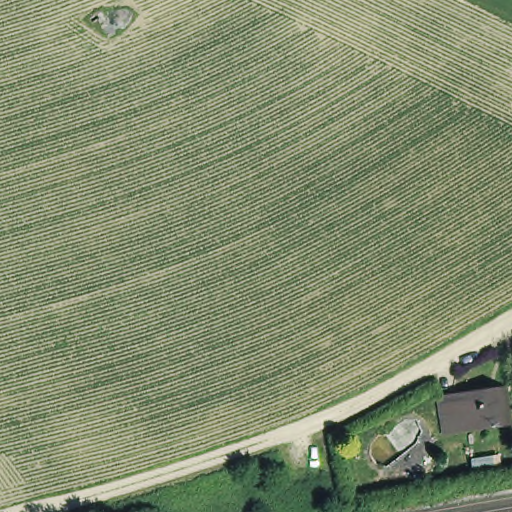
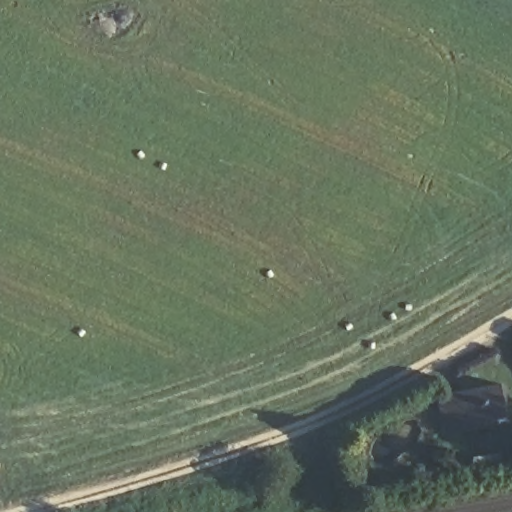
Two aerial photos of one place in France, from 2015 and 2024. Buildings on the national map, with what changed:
unchanged [(502,390),(505,425),(439,431),(436,397),(502,390)]

